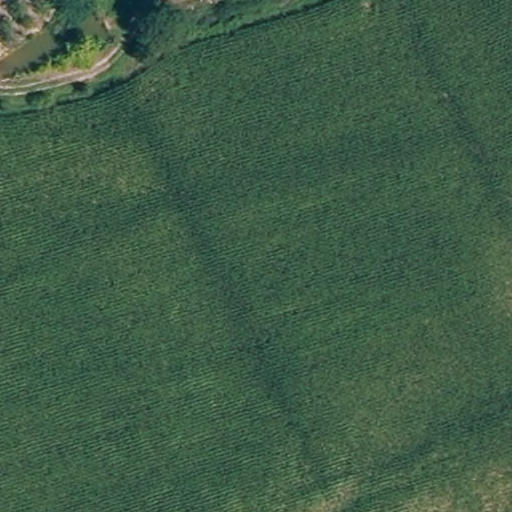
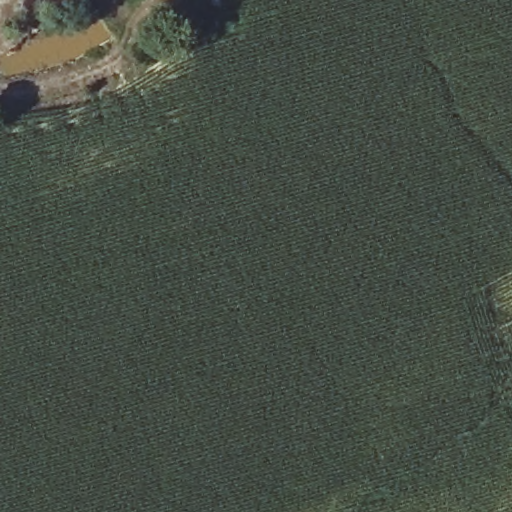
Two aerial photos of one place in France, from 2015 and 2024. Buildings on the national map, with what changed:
[]

